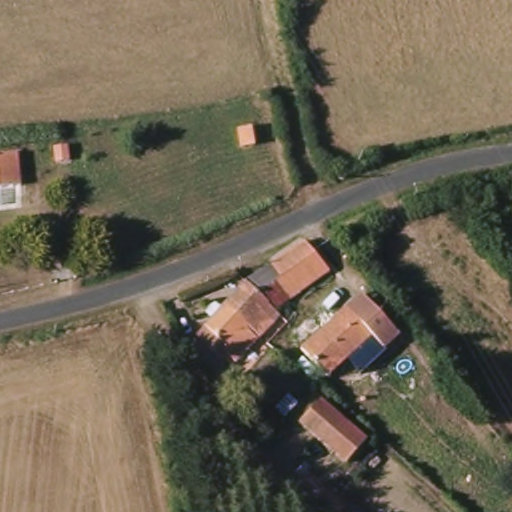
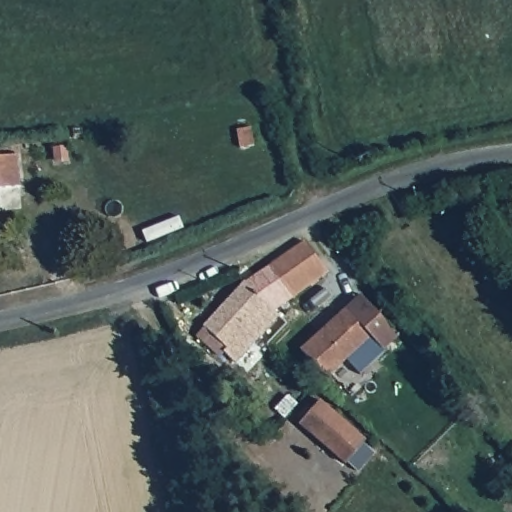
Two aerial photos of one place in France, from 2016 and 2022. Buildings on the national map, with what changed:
unchanged [(253,148),(236,151),(234,131),(251,129),(253,148)]
unchanged [(0,159),(27,156),(30,182),(6,185),(8,205),(0,206),(0,159)]
unchanged [(301,235),(325,267),(293,296),(269,256),(301,235)]
unchanged [(243,278),(269,256),(293,296),(277,308),(243,278)]
unchanged [(281,312),(240,353),(229,343),(221,350),(194,327),(243,278),(277,308),(281,312)]
unchanged [(395,332),(380,348),(367,336),(324,382),(300,358),(359,297),(395,332)]
unchanged [(362,440),(343,461),(307,428),(327,407),(362,440)]

